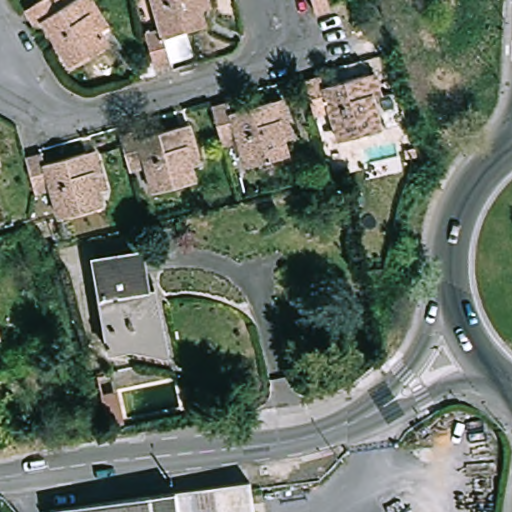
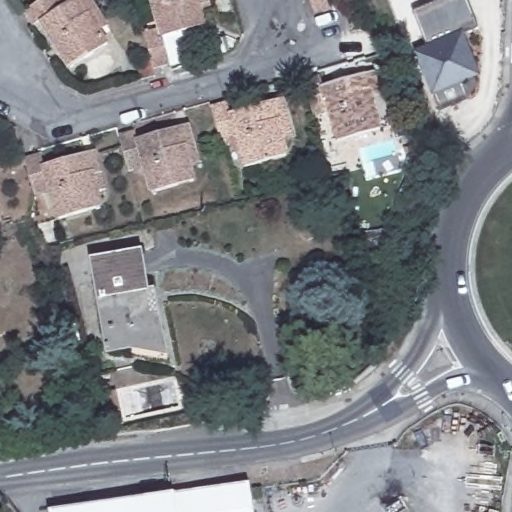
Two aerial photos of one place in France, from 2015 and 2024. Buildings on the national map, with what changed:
unchanged [(72,70),(41,21),(33,26),(23,12),(42,0),(90,0),(108,27),(100,32),(109,45),(72,70)]
unchanged [(209,9),(198,12),(202,26),(162,39),(169,64),(154,69),(143,34),(159,29),(150,0),(206,0),(209,9)]
unchanged [(327,7),(325,0),(344,0),(345,2),(327,7)]
new [(440,0),(466,0),(477,30),(460,36),(460,35),(425,49),(411,11),(440,0)]
new [(425,49),(460,35),(475,75),(459,81),(466,100),(437,111),(415,52),(425,49)]
unchanged [(328,113),(312,117),(302,84),(318,79),(321,88),(363,76),(373,72),(385,114),(375,117),(379,131),(337,144),(328,113)]
unchanged [(239,135),(224,140),(214,105),(230,100),(233,110),(273,99),(283,95),(295,135),(285,139),(289,152),(249,165),(239,135)]
unchanged [(142,165),(127,169),(117,134),(132,130),(134,137),(176,125),(187,121),(198,161),(188,165),(192,179),(150,191),(142,165)]
unchanged [(50,188),(35,193),(23,158),(40,152),(43,164),(82,151),(93,148),(105,187),(95,191),(99,205),(60,217),(50,188)]
unchanged [(128,344),(108,348),(107,341),(110,340),(102,303),(99,303),(89,257),(137,246),(146,288),(157,338),(128,344)]
unchanged [(146,288),(153,286),(184,355),(128,344),(157,338),(146,288)]
unchanged [(122,420),(106,423),(99,395),(114,390),(122,420)]
unchanged [(252,512),(48,512),(48,509),(247,480),(252,512)]

